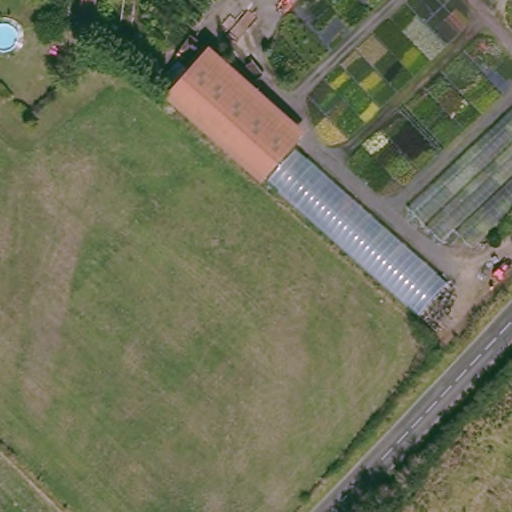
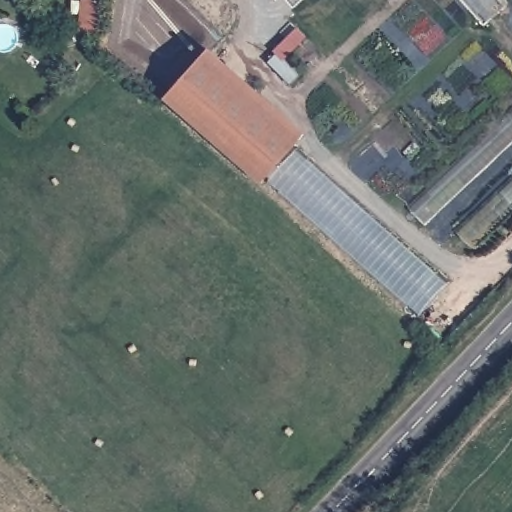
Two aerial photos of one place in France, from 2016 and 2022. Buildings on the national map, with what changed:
unchanged [(77,0),(105,0),(102,36),(77,31),(77,0)]
unchanged [(303,134),(289,148),(263,177),(177,101),(177,100),(169,94),(184,77),(212,49),(220,58),(303,134)]
unchanged [(454,230),(442,242),(407,208),(512,110),(512,208),(470,249),(454,230)]
unchanged [(445,278),(418,310),(263,177),(289,148),(445,278)]

